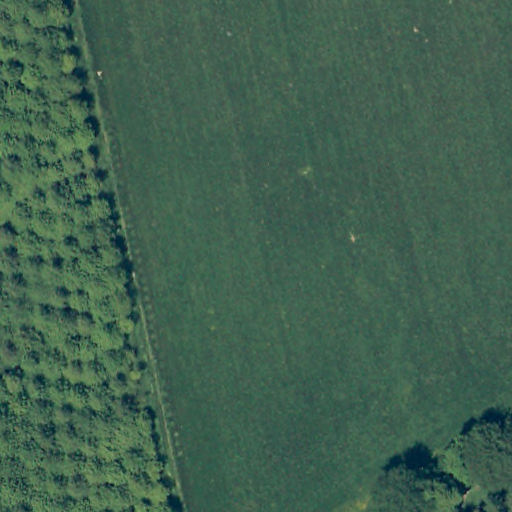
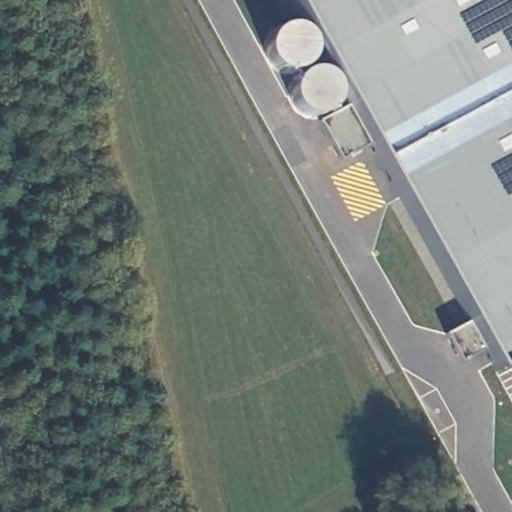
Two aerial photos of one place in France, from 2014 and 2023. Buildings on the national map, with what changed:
new [(308,0),(512,0),(512,356),(504,360),(308,0)]

